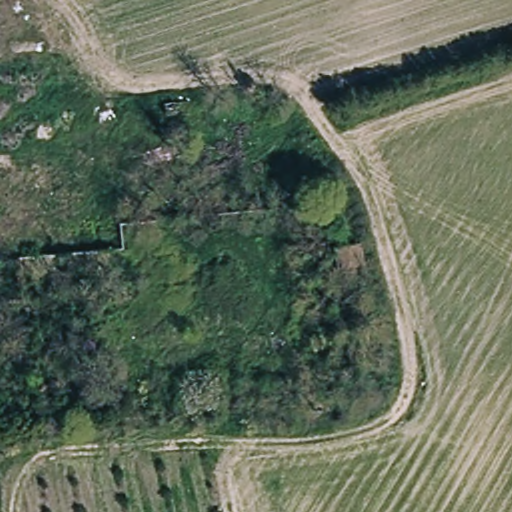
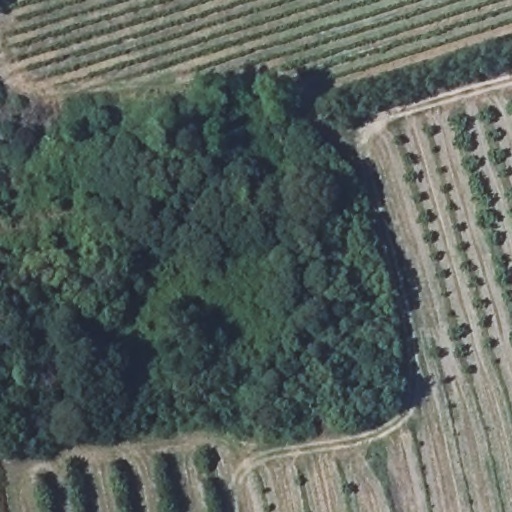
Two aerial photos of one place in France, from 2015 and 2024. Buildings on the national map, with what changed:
unchanged [(331,226),(354,224),(363,266),(335,267),(331,226)]

